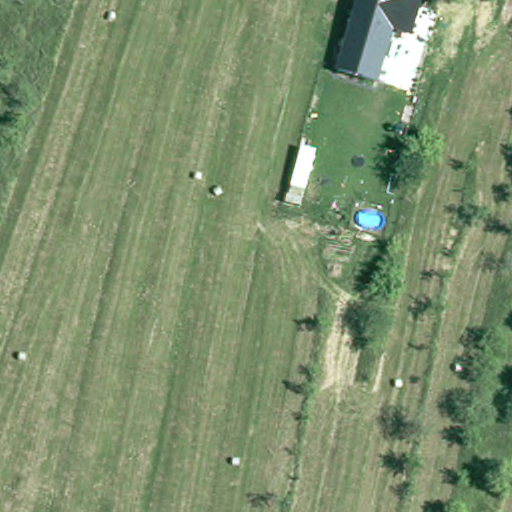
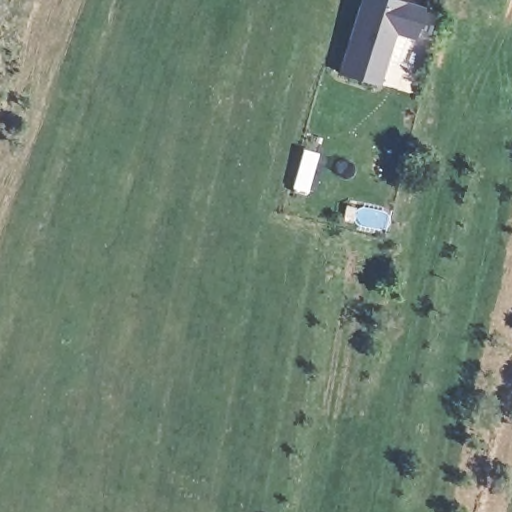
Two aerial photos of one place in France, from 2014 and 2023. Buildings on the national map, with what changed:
unchanged [(421,7),(411,41),(392,35),(378,86),(335,72),(358,0),(396,0),(421,7)]

